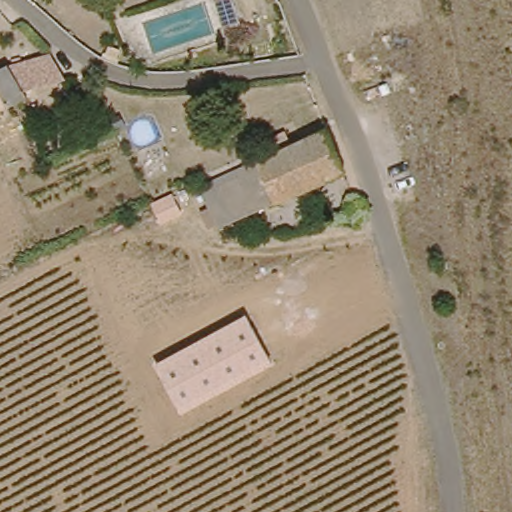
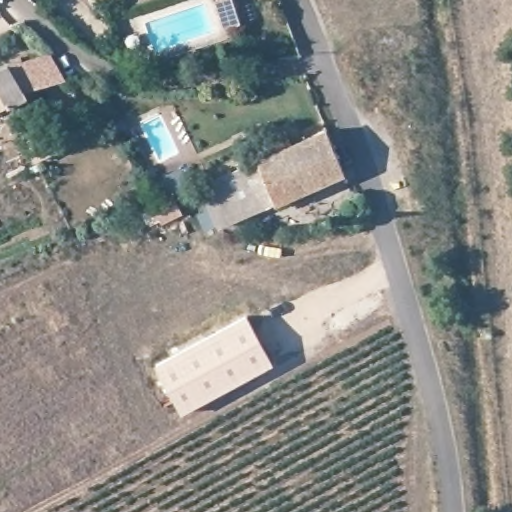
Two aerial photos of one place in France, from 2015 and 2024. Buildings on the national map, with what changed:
unchanged [(50,45),(65,69),(28,80),(30,87),(0,107),(0,66),(18,55),(50,45)]
unchanged [(329,124),(345,164),(212,217),(199,183),(254,156),(329,124)]
unchanged [(157,362),(246,315),(273,364),(182,412),(157,362)]

